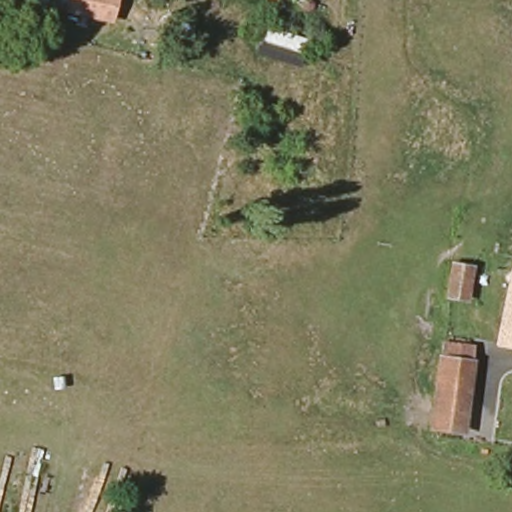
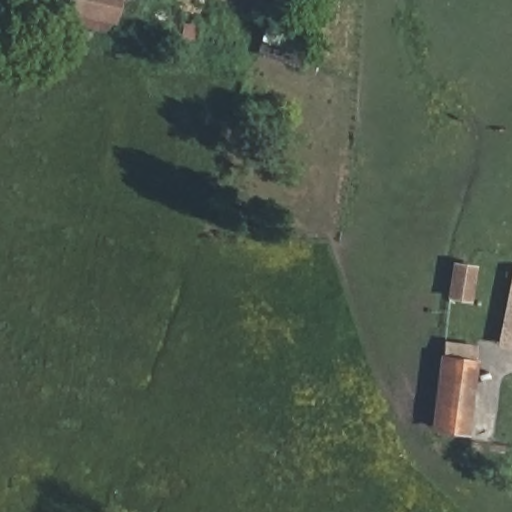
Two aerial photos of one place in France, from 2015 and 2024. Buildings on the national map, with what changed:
unchanged [(110,17),(69,6),(70,0),(114,0),(110,17)]
unchanged [(470,269),(466,298),(451,295),(457,267),(470,269)]
unchanged [(503,346),(512,305),(512,347),(503,346)]
unchanged [(436,446),(438,434),(432,433),(447,341),(457,343),(456,348),(474,351),(463,436),(462,449),(436,446)]

